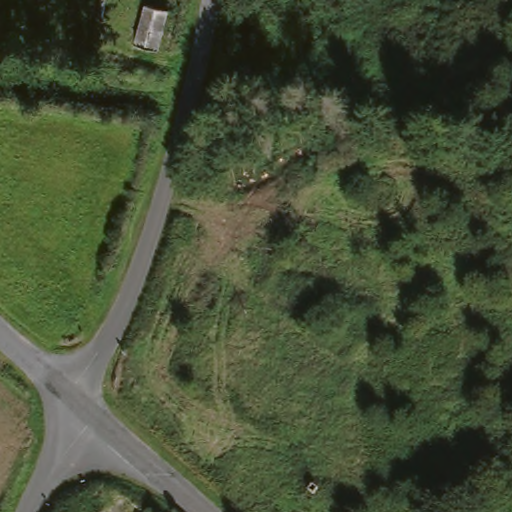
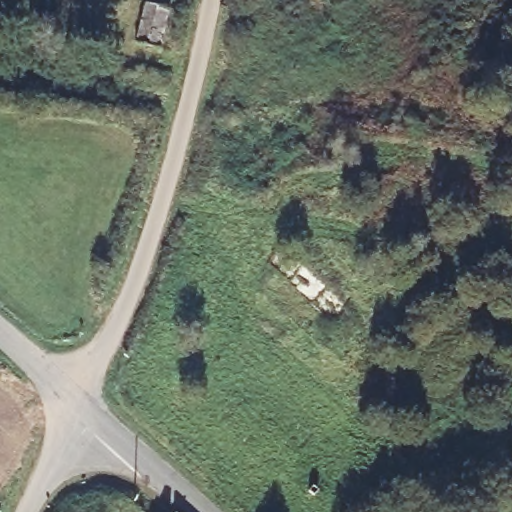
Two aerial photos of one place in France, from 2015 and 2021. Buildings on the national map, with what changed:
unchanged [(147,3),(169,7),(160,45),(138,41),(147,3)]
unchanged [(166,512),(173,505),(181,512),(166,512)]

